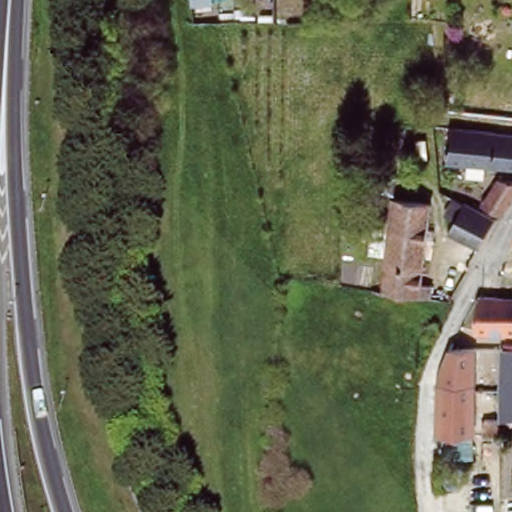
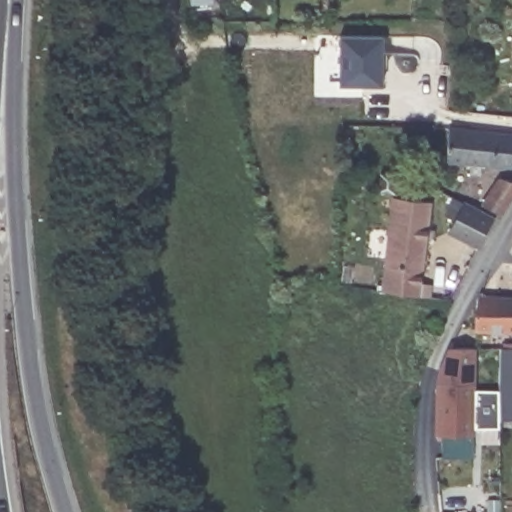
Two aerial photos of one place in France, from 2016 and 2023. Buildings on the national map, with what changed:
new [(339,84),(340,35),(382,35),(382,85),(339,84)]
demolished [(481,118),(482,96),(512,98),(512,120),(481,118)]
unchanged [(450,160),(452,127),(512,134),(512,166),(450,160)]
unchanged [(487,205),(504,176),(512,179),(512,199),(503,214),(487,205)]
unchanged [(382,211),(386,187),(397,189),(416,191),(413,215),(432,217),(426,275),(432,276),(431,291),(424,290),(421,310),(384,305),(395,212),(382,211)]
unchanged [(480,248),(451,231),(466,202),(467,201),(496,218),(480,248)]
unchanged [(472,330),(474,295),(512,297),(512,332),(472,330)]
unchanged [(502,338),(512,339),(512,410),(502,410),(501,367),(502,338)]
unchanged [(440,400),(442,383),(445,370),(452,352),(475,353),(475,438),(440,438),(440,415),(440,400)]
unchanged [(502,420),(502,424),(487,424),(487,410),(502,410),(502,414),(502,420)]

